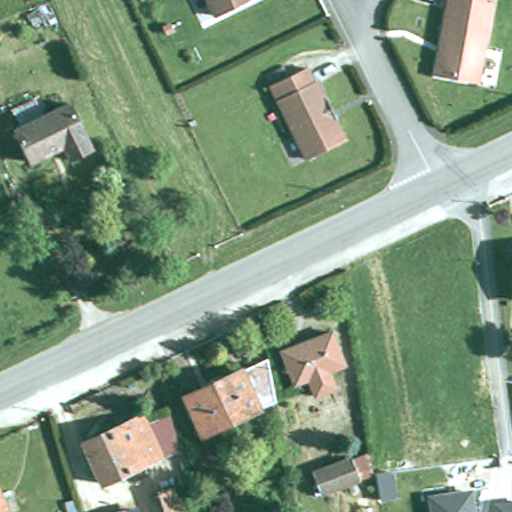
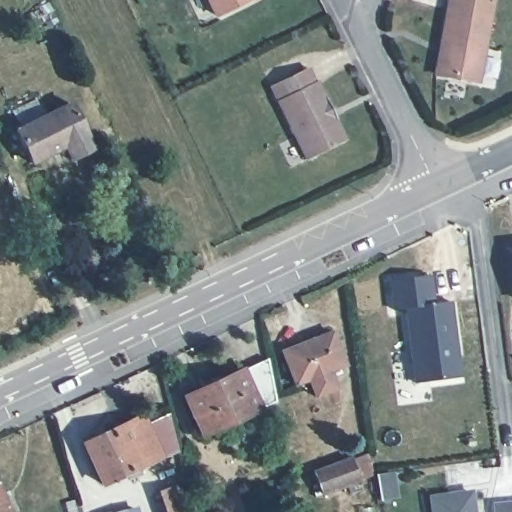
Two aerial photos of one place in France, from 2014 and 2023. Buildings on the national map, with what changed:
unchanged [(222,15),(213,0),(252,0),(222,15)]
unchanged [(477,81),(435,74),(448,0),(491,0),(477,81)]
unchanged [(312,164),(275,90),(312,72),(318,87),(322,86),(330,103),(340,123),(350,143),(312,164)]
unchanged [(35,157),(20,125),(74,100),(97,144),(75,155),(68,141),(35,157)]
new [(435,302),(452,300),(461,376),(413,383),(405,309),(393,310),(390,281),(432,275),(435,302)]
unchanged [(329,372),(335,387),(317,394),(310,378),(297,384),(282,350),(330,330),(345,365),(329,372)]
new [(267,357),(275,401),(258,409),(240,369),(267,357)]
unchanged [(189,392),(240,369),(258,409),(208,432),(189,392)]
unchanged [(83,441),(140,413),(163,453),(105,482),(83,441)]
unchanged [(313,498),(305,474),(359,455),(362,481),(313,498)]
unchanged [(475,512),(430,512),(427,495),(472,490),(475,512)]
unchanged [(180,491),(188,512),(170,512),(165,497),(180,491)]
unchanged [(10,512),(0,512),(0,492),(10,512)]
unchanged [(72,498),(75,512),(65,512),(62,502),(72,498)]
unchanged [(125,512),(112,512),(123,508),(125,512)]

